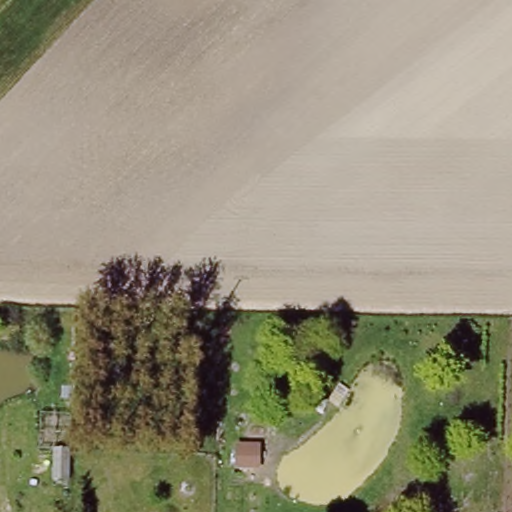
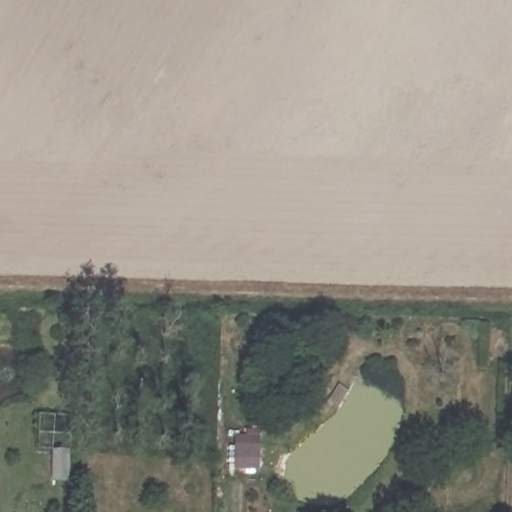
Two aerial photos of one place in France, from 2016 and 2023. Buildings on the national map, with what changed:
unchanged [(63,463),(62,494),(47,493),(48,463),(63,463)]

